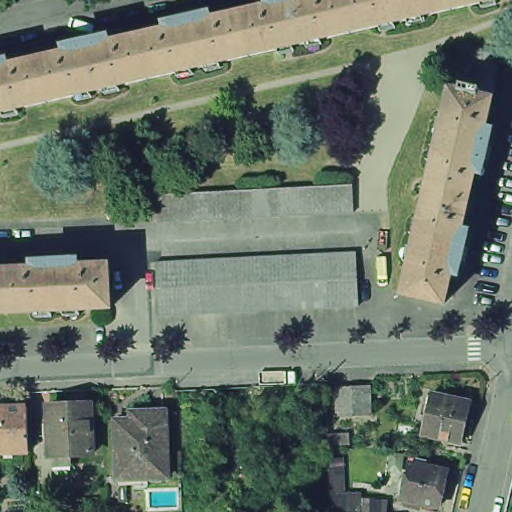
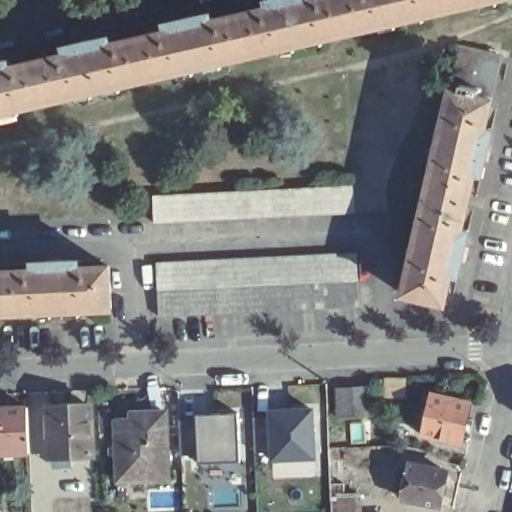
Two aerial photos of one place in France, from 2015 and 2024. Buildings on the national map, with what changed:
unchanged [(287,0),(302,0),(302,3),(316,0),(348,0),(355,34),(253,58),(245,16),(288,6),(287,0)]
unchanged [(457,11),(355,34),(348,0),(455,0),(457,11)]
unchanged [(455,0),(505,0),(457,11),(455,0)]
unchanged [(184,22),(198,19),(200,26),(245,16),(253,58),(151,81),(142,39),(186,29),(184,22)]
unchanged [(82,45),(96,42),(98,49),(142,39),(151,81),(50,104),(41,62),(83,53),(82,45)]
unchanged [(459,49),(500,58),(490,98),(450,88),(459,49)]
unchanged [(41,62),(50,104),(0,116),(0,72),(41,62)]
unchanged [(485,157),(477,156),(467,200),(426,191),(450,88),(490,98),(480,141),(488,142),(485,157)]
unchanged [(231,217),(217,218),(202,218),(187,219),(173,220),(158,220),(157,199),(157,192),(172,192),(187,191),(202,190),(215,190),(230,189),(244,188),(258,188),(272,187),(287,187),(301,186),(315,185),(329,185),(343,184),(357,183),(358,190),(359,211),(344,212),(330,212),(316,213),(302,214),(287,214),(273,215),(260,216),(245,216),(231,217)]
unchanged [(460,261),(453,260),(443,303),(402,294),(426,191),(467,200),(457,245),(464,246),(460,261)]
unchanged [(235,312),(222,313),(207,313),(192,314),(178,315),(163,315),(162,289),(160,261),(175,261),(190,260),(204,259),(219,259),(233,258),(247,257),(262,257),(275,256),(290,255),(304,255),(317,254),(332,253),(346,253),(360,252),(361,279),(362,306),(347,306),(335,307),(320,308),(307,308),(292,309),(277,310),(263,310),(250,311),(235,312)]
unchanged [(50,266),(65,265),(65,273),(80,272),(111,271),(112,314),(8,318),(6,276),(51,273),(50,266)]
unchanged [(6,276),(8,318),(0,319),(0,276),(6,276)]
unchanged [(372,415),(339,416),(338,387),(370,385),(372,415)]
unchanged [(457,440),(426,433),(434,393),(475,401),(469,426),(466,442),(457,440)]
new [(316,458),(268,460),(265,406),(312,404),(316,458)]
unchanged [(59,465),(59,455),(57,455),(57,437),(50,437),(50,425),(56,425),(55,405),(97,405),(98,454),(78,455),(78,465),(59,465)]
unchanged [(7,457),(7,451),(0,452),(0,407),(30,406),(32,451),(15,451),(15,457),(7,457)]
new [(236,457),(195,457),(193,411),(234,409),(236,457)]
unchanged [(135,420),(135,412),(147,411),(168,411),(170,476),(143,477),(120,478),(120,471),(118,420),(135,420)]
unchanged [(347,471),(335,471),(333,457),(347,457),(347,471)]
unchanged [(442,506),(423,502),(422,508),(408,505),(410,499),(405,498),(412,462),(418,463),(420,457),(427,459),(426,465),(450,470),(442,506)]
unchanged [(387,484),(375,483),(377,466),(389,467),(387,484)]

